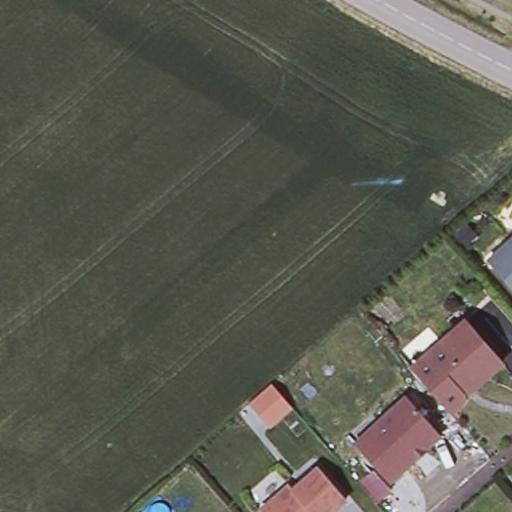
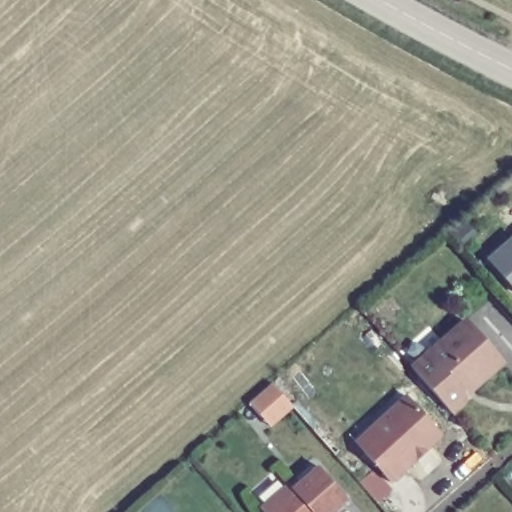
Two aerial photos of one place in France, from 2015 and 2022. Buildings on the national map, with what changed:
unchanged [(489,259),(512,238),(512,285),(489,259)]
unchanged [(467,317),(502,358),(477,381),(472,376),(463,385),(470,392),(452,408),(414,364),(467,317)]
unchanged [(437,431),(422,446),(418,442),(409,450),(412,454),(386,477),(357,444),(350,437),(376,414),(402,391),(437,431)]
unchanged [(287,483),(290,487),(314,466),(342,497),(325,512),(265,512),(261,507),(287,483)]

